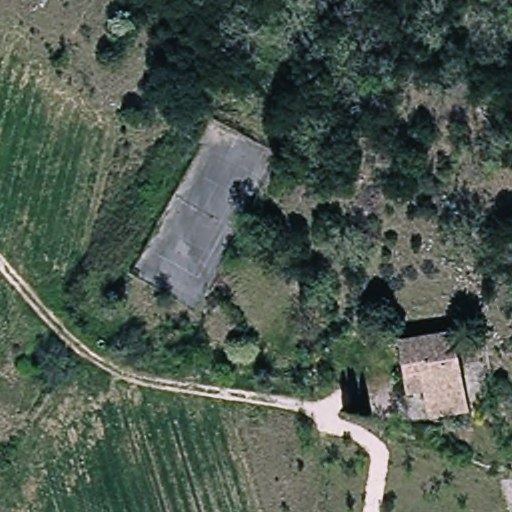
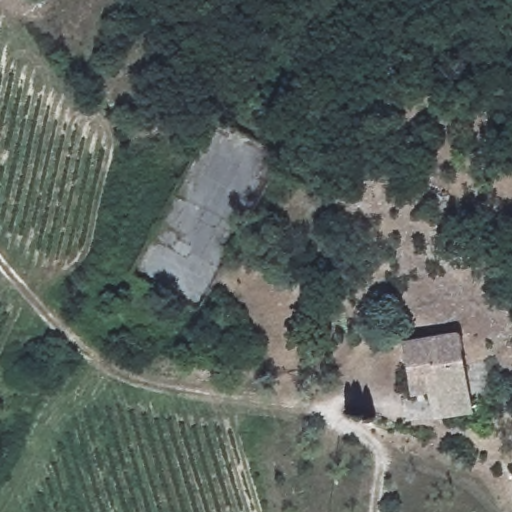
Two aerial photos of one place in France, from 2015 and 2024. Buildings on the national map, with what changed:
unchanged [(407,377),(405,342),(462,337),(470,414),(428,419),(426,394),(408,395),(407,377)]

